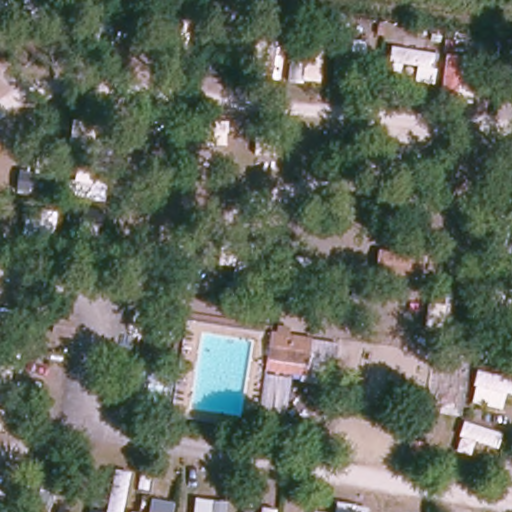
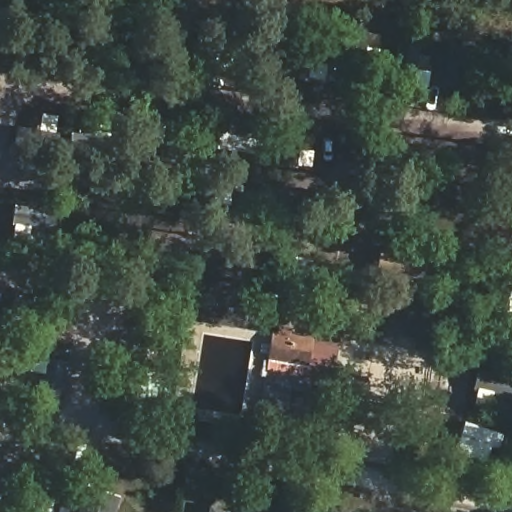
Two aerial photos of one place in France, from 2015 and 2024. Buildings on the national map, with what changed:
unchanged [(443,266),(439,283),(356,270),(358,251),(443,266)]
unchanged [(302,370),(267,363),(274,327),(279,328),(280,322),(281,321),(291,322),(291,324),(289,330),(309,333),(302,370)]
unchanged [(33,350),(15,346),(19,331),(35,333),(33,350)]

